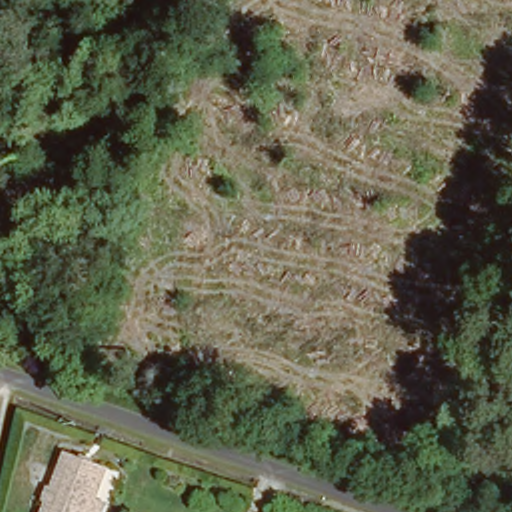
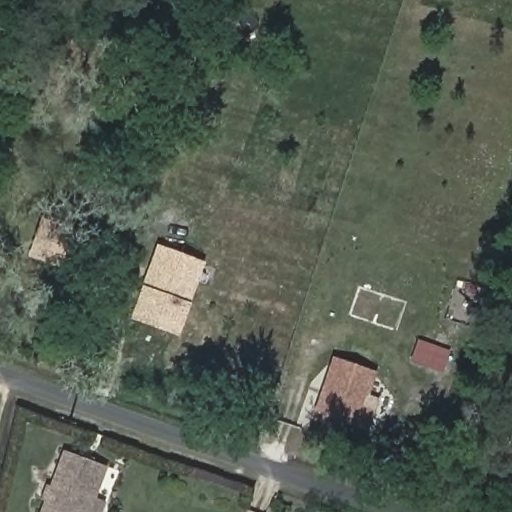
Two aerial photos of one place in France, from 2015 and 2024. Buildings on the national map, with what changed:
new [(85,232),(71,271),(29,256),(41,219),(85,232)]
new [(157,244),(206,263),(178,337),(129,319),(157,244)]
new [(369,431),(358,427),(318,414),(336,361),(375,374),(368,398),(379,402),(369,431)]
unchanged [(103,512),(42,512),(64,447),(111,462),(97,502),(106,505),(103,512)]

